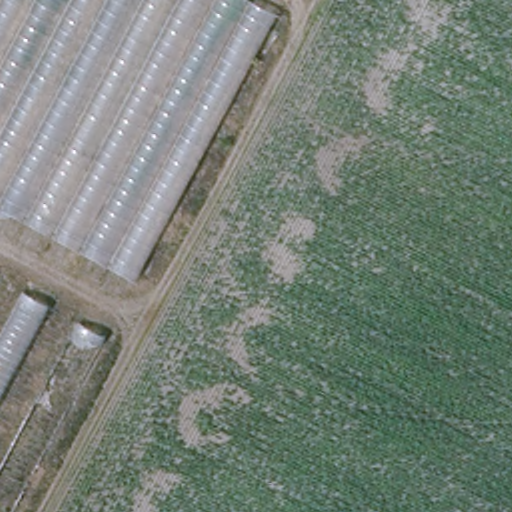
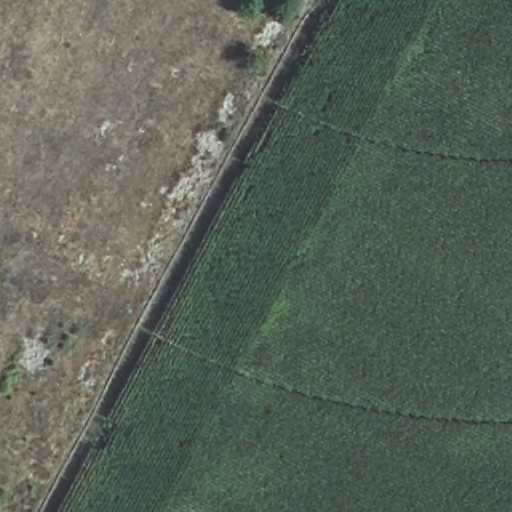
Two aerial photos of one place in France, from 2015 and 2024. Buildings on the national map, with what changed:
demolished [(0,211),(0,0),(254,0),(270,8),(128,279),(0,211)]
demolished [(46,303),(0,391),(0,328),(20,291),(46,303)]
demolished [(100,332),(8,512),(0,512),(0,467),(75,320),(100,332)]

